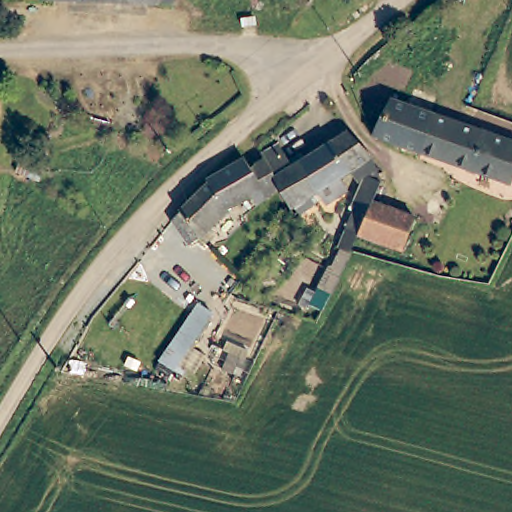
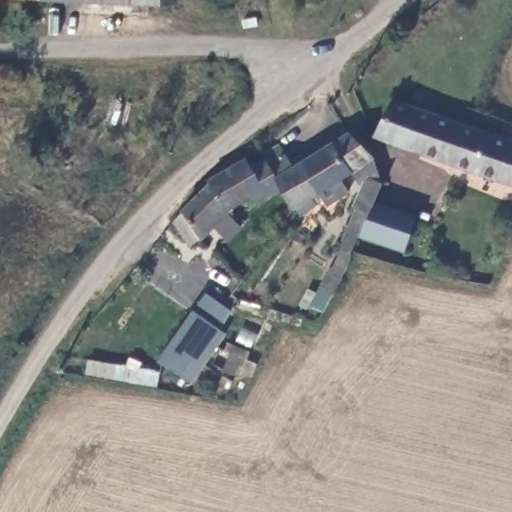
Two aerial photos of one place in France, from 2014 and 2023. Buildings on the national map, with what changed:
unchanged [(178,3),(82,0),(178,0),(178,3)]
unchanged [(389,93),(391,94),(394,87),(415,96),(412,102),(435,111),(424,139),(420,149),(374,132),(389,93)]
unchanged [(463,121),(464,121),(449,159),(420,149),(424,139),(435,111),(463,121)]
unchanged [(512,179),(449,159),(464,121),(512,139),(512,179)]
unchanged [(284,144),(290,155),(294,162),(305,157),(310,163),(353,133),(362,144),(370,153),(370,154),(387,179),(377,203),(371,216),(363,236),(356,252),(344,247),(362,209),(358,203),(366,181),(354,172),(345,180),(353,192),(333,206),(323,193),(297,209),(285,187),(267,155),(284,144)]
unchanged [(185,214),(187,212),(215,185),(214,184),(261,147),(263,149),(267,155),(285,187),(270,198),(266,191),(259,194),(236,209),(225,220),(206,239),(193,249),(176,225),(179,221),(185,214)]
unchanged [(422,221),(408,254),(363,236),(371,216),(377,203),(422,221)]
unchanged [(212,314),(175,373),(162,364),(199,305),(212,314)]

